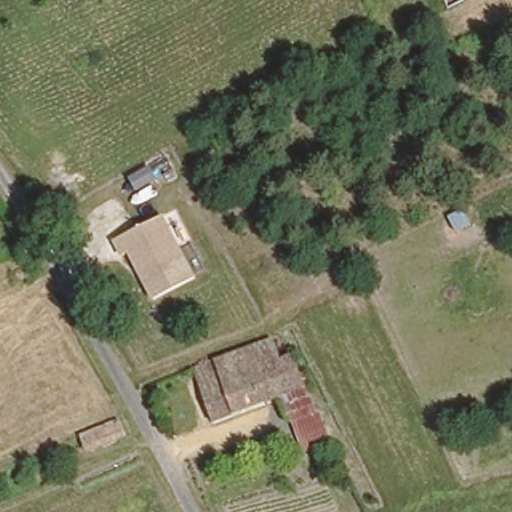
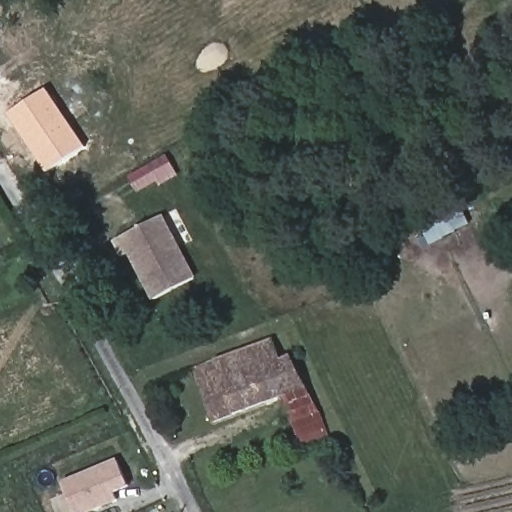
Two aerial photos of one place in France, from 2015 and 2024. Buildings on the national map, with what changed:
new [(45,89),(85,146),(46,174),(7,114),(45,89)]
new [(177,175),(154,189),(151,185),(139,194),(129,178),(167,156),(177,175)]
unchanged [(198,279),(154,304),(130,254),(122,258),(113,243),(167,216),(198,279)]
unchanged [(257,373),(268,399),(218,419),(194,369),(276,339),(286,360),(257,373)]
unchanged [(322,406),(293,419),(280,393),(268,399),(257,373),(286,360),(297,356),(322,406)]
unchanged [(120,421),(130,440),(81,461),(72,442),(120,421)]
new [(60,483),(115,459),(126,483),(111,490),(115,497),(82,512),(73,512),(60,483)]

